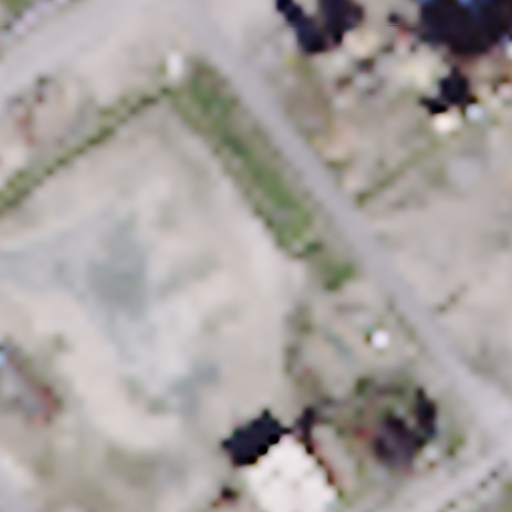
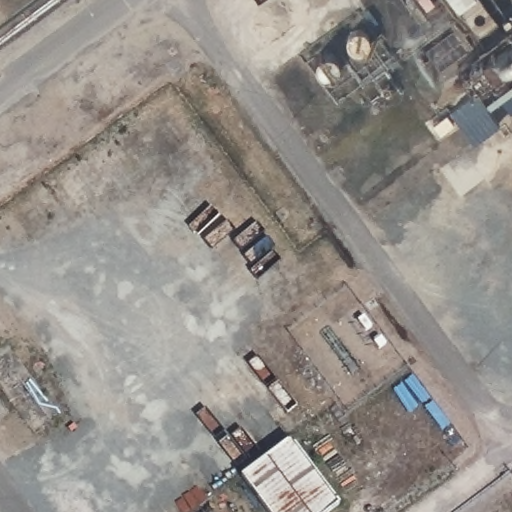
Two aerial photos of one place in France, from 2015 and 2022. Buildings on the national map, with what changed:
unchanged [(327,512),(265,512),(236,476),(287,440),(340,502),(327,512)]

